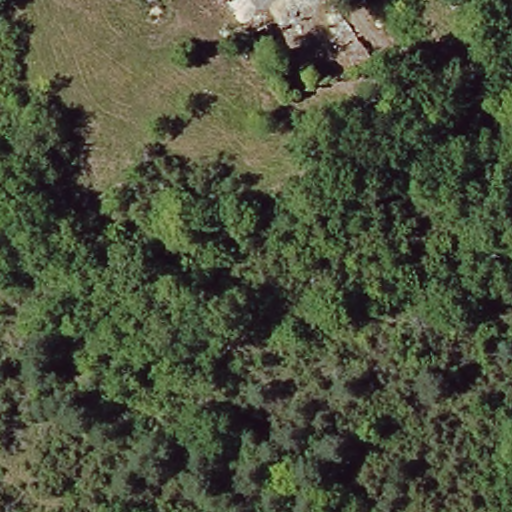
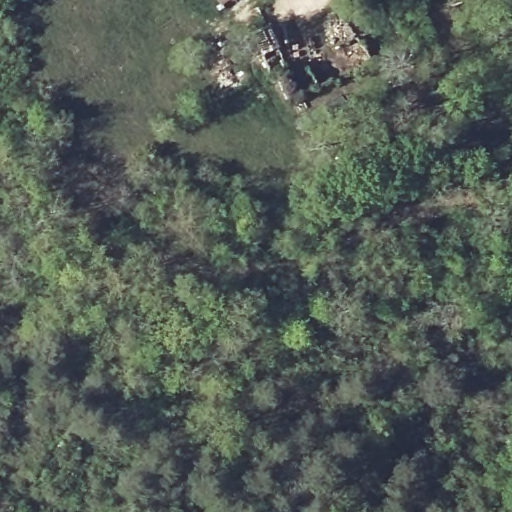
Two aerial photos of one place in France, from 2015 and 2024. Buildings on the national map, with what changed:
unchanged [(223,4),(220,0),(228,0),(223,4)]

